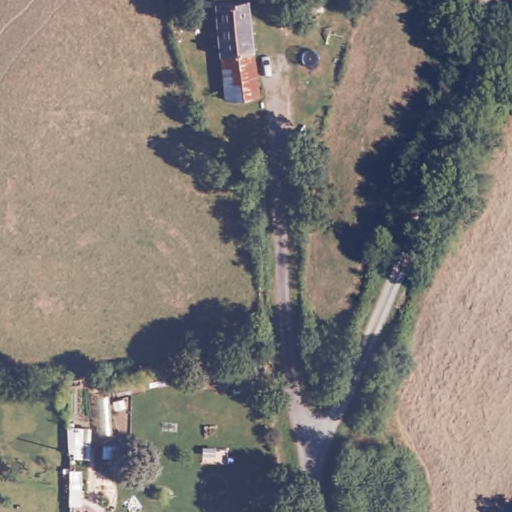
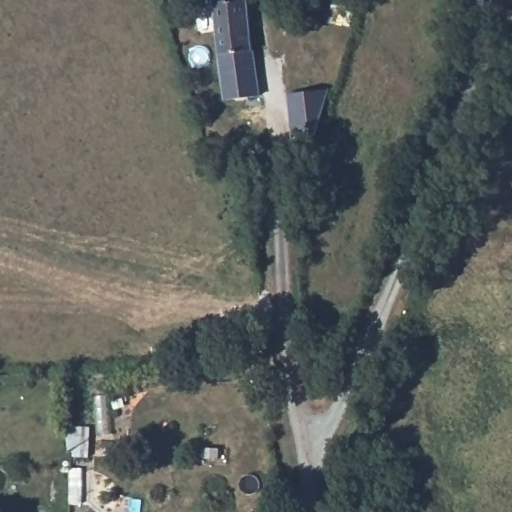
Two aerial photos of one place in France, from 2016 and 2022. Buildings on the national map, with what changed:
unchanged [(183,1),(183,0),(193,0),(183,1)]
unchanged [(254,94),(221,96),(218,55),(215,51),(206,0),(237,0),(246,46),(254,94)]
new [(329,89),(315,134),(293,136),(288,94),(329,89)]

